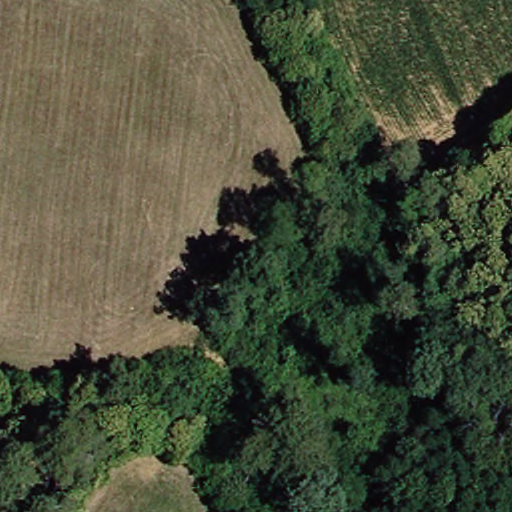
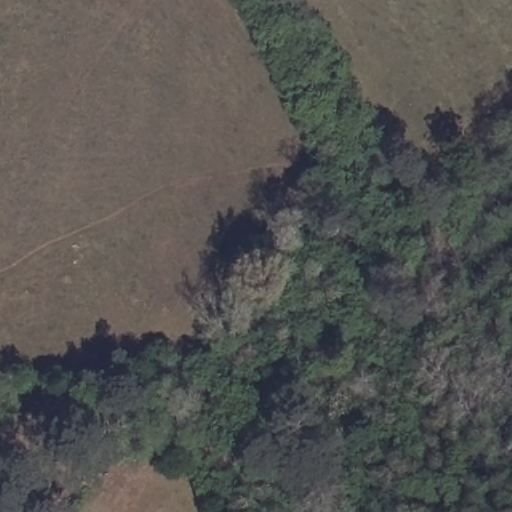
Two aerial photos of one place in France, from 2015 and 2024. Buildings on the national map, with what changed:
[]

